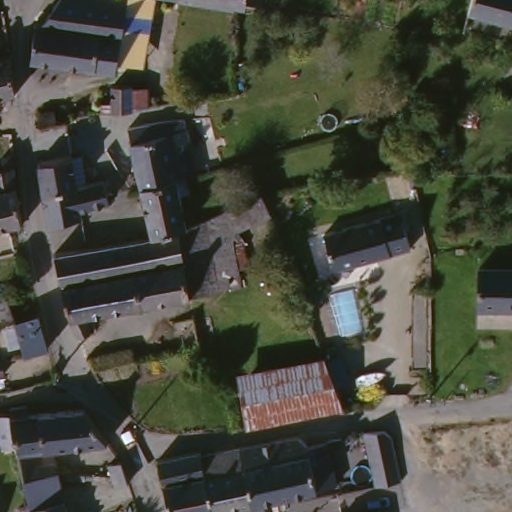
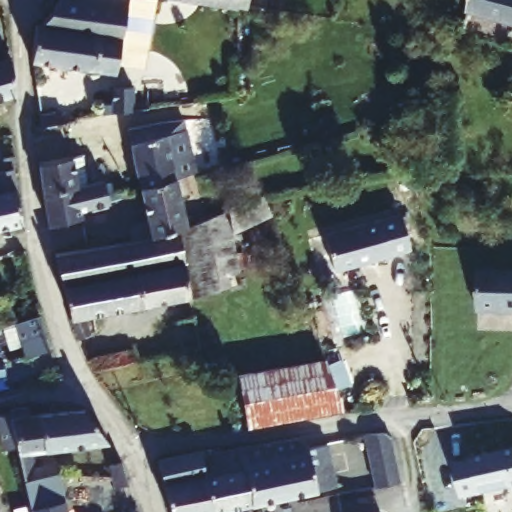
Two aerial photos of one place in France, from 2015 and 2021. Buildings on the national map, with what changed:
unchanged [(125,67),(37,57),(37,56),(46,22),(53,23),(69,0),(137,0),(125,67)]
unchanged [(147,60),(125,67),(137,0),(157,0),(147,60)]
unchanged [(230,0),(267,0),(266,7),(246,4),(230,0)]
unchanged [(471,13),(475,0),(512,0),(512,11),(498,6),(492,26),(469,19),(471,13)]
unchanged [(15,59),(18,91),(13,92),(0,96),(0,61),(15,57),(15,59)]
unchanged [(113,102),(122,101),(120,82),(140,81),(143,106),(134,107),(114,109),(113,102)]
unchanged [(40,118),(53,117),(54,127),(44,129),(42,129),(40,118)]
unchanged [(192,167),(187,168),(185,169),(135,181),(128,149),(127,139),(135,137),(143,136),(182,127),(191,165),(192,167)]
unchanged [(22,221),(0,225),(0,153),(14,151),(15,165),(13,166),(23,221),(22,221)]
unchanged [(110,199),(110,205),(81,211),(84,224),(52,231),(51,228),(46,197),(41,170),(44,169),(72,163),(81,161),(84,180),(86,186),(105,182),(110,199)]
unchanged [(135,181),(185,169),(189,186),(177,189),(184,220),(176,222),(154,230),(147,232),(135,181)]
unchanged [(229,223),(222,207),(225,206),(237,200),(258,191),(264,207),(264,208),(229,223)]
unchanged [(68,327),(61,313),(63,312),(53,252),(74,247),(127,236),(147,232),(154,230),(176,222),(184,220),(221,207),(235,281),(80,310),(89,330),(72,334),(68,327)]
unchanged [(329,230),(406,210),(415,247),(338,266),(329,230)]
unchanged [(512,275),(512,315),(478,312),(481,272),(512,275)]
unchanged [(9,295),(14,320),(11,321),(0,323),(0,297),(9,295)]
unchanged [(39,313),(47,347),(26,352),(18,318),(39,313)]
unchanged [(240,365),(321,357),(332,371),(329,363),(342,358),(352,382),(339,387),(346,406),(255,423),(240,365)]
unchanged [(13,410),(28,408),(29,416),(90,411),(110,442),(34,451),(37,466),(58,462),(61,475),(27,478),(20,452),(18,452),(13,413),(13,410)]
demolished [(438,454),(420,456),(418,435),(424,428),(436,427),(438,454)]
unchanged [(365,436),(385,436),(392,442),(398,486),(372,490),(365,436)]
unchanged [(307,455),(307,457),(327,455),(334,489),(312,494),(231,512),(208,512),(202,481),(204,462),(297,447),(307,455)]
new [(470,461),(469,457),(512,448),(512,486),(479,492),(460,497),(453,463),(470,461)]
unchanged [(204,458),(204,462),(202,481),(208,512),(166,512),(159,467),(204,458)]
unchanged [(129,472),(128,472),(131,482),(118,485),(115,473),(114,470),(113,463),(122,461),(127,468),(129,472)]
unchanged [(69,512),(35,512),(27,478),(61,475),(68,507),(69,512)]
demolished [(512,512),(491,512),(512,507),(512,512)]

